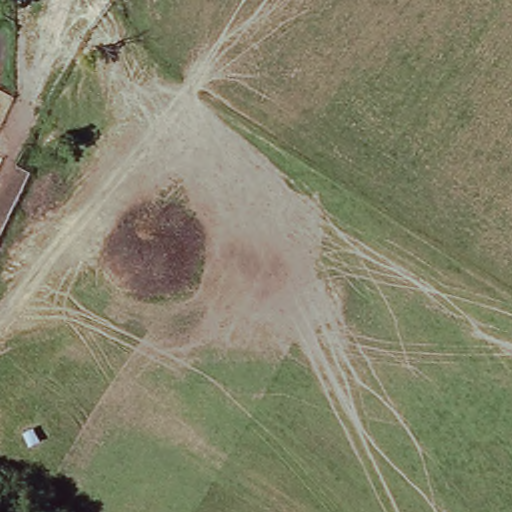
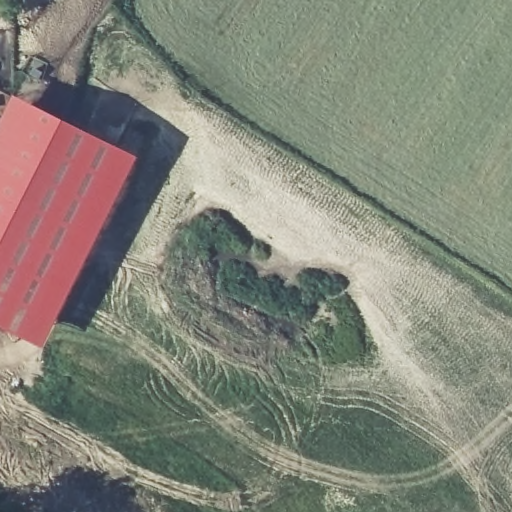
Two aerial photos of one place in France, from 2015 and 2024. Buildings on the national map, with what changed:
new [(43,111),(130,155),(34,345),(0,328),(0,196),(43,111)]

